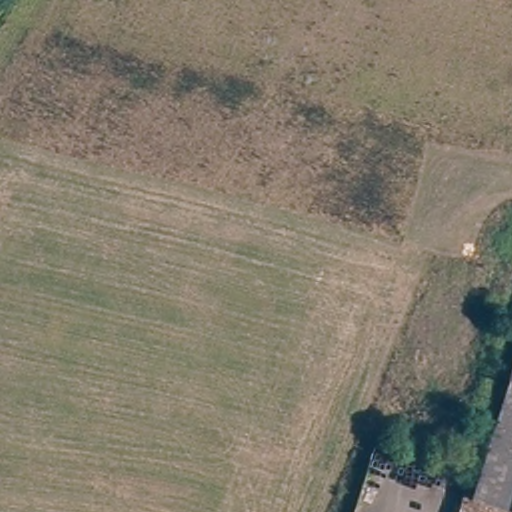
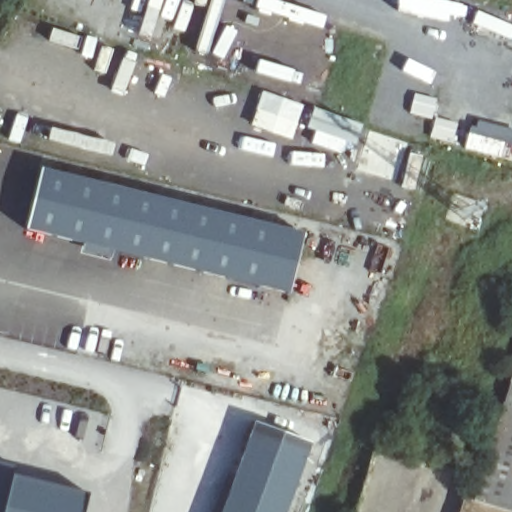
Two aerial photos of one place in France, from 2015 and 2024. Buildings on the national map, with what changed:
new [(344,140),(340,152),(310,142),(315,130),(306,127),(314,107),(362,124),(355,144),(344,140)]
new [(469,126),(476,127),(478,121),(512,129),(512,160),(464,148),(469,126)]
new [(303,234),(287,293),(116,252),(113,262),(81,254),(84,243),(25,231),(41,169),(303,234)]
unchanged [(512,409),(512,511),(484,503),(512,409)]
new [(287,512),(221,512),(254,422),(312,442),(287,512)]
new [(13,469),(13,472),(3,512),(0,512),(0,465),(13,469)]
new [(81,512),(3,512),(13,472),(85,492),(81,512)]

